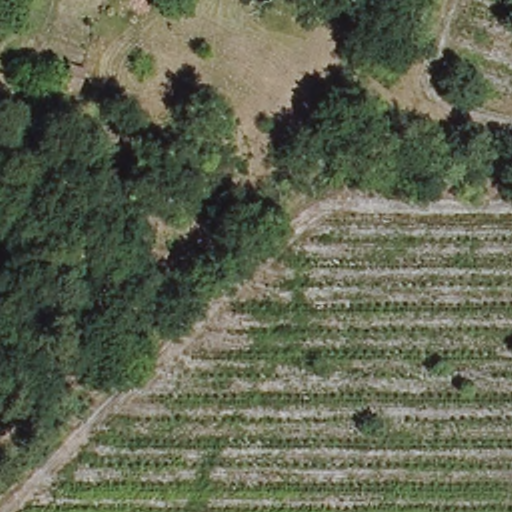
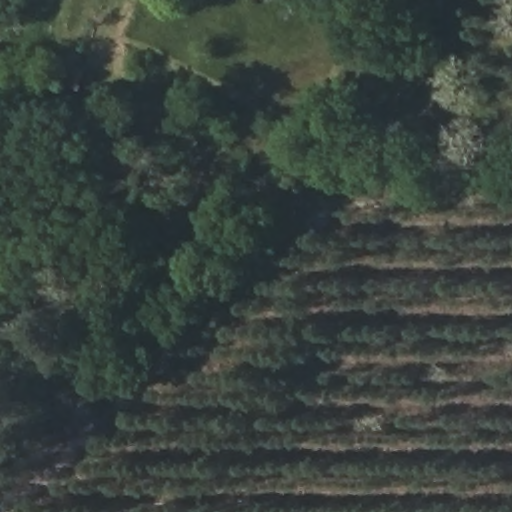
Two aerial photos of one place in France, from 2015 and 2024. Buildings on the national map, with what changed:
unchanged [(84,99),(57,87),(67,58),(91,66),(84,99)]

